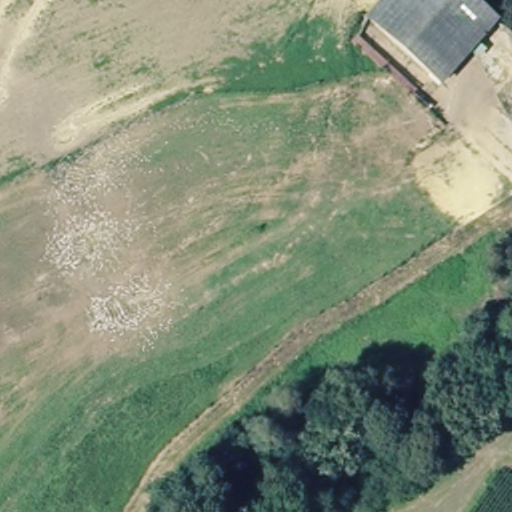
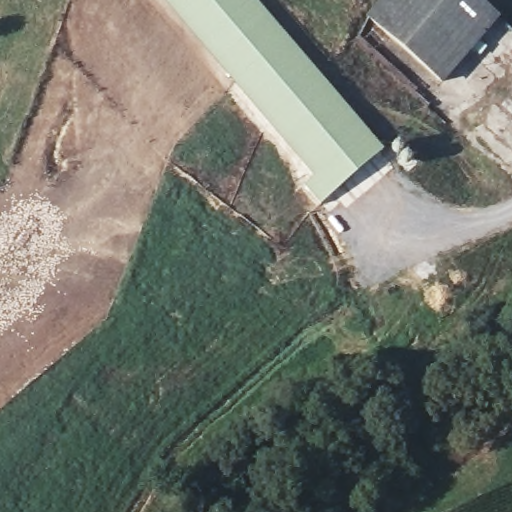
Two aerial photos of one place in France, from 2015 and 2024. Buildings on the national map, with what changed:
new [(304,183),(313,176),(162,0),(255,0),(382,151),(319,202),(304,183)]
unchanged [(472,0),(494,19),(443,74),(371,15),(385,0),(472,0)]

